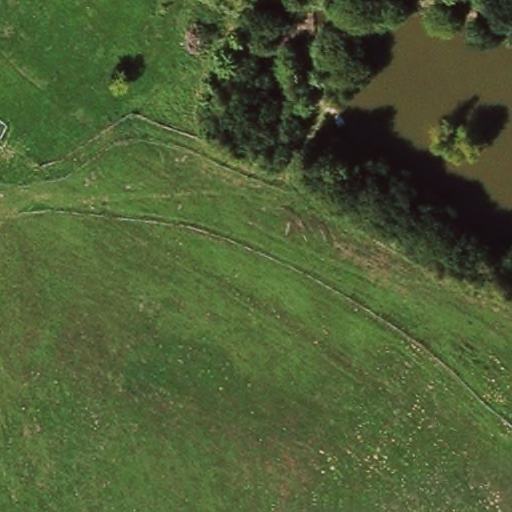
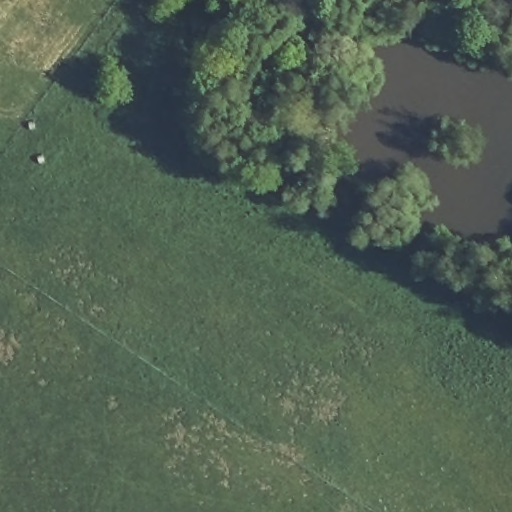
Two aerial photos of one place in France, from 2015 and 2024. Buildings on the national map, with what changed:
[]

